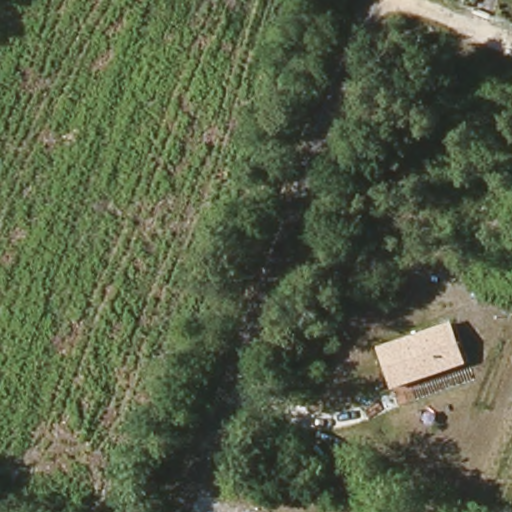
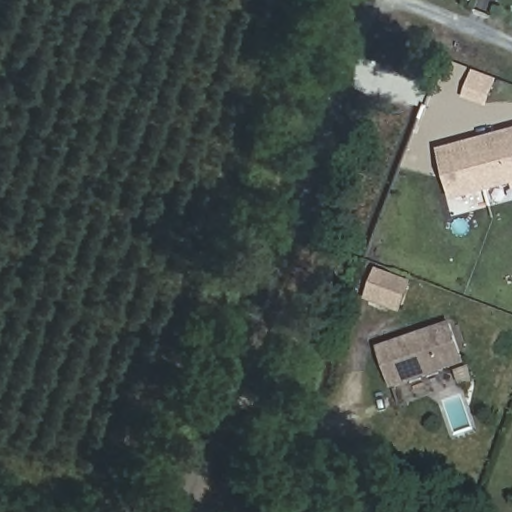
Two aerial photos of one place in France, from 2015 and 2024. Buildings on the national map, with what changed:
new [(452,197),(440,152),(512,132),(512,181),(452,197)]
new [(412,281),(400,313),(364,300),(376,268),(412,281)]
unchanged [(390,389),(376,347),(451,322),(465,364),(390,389)]

